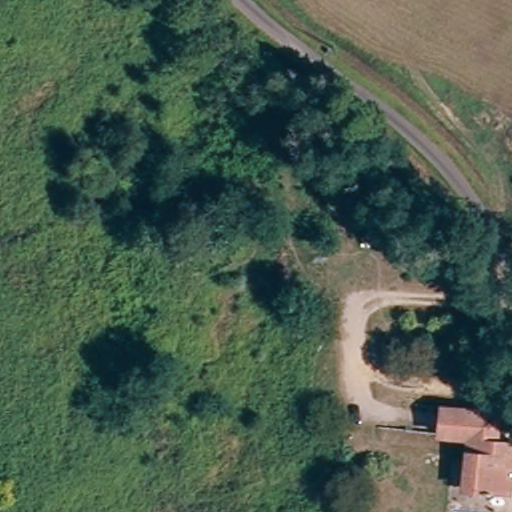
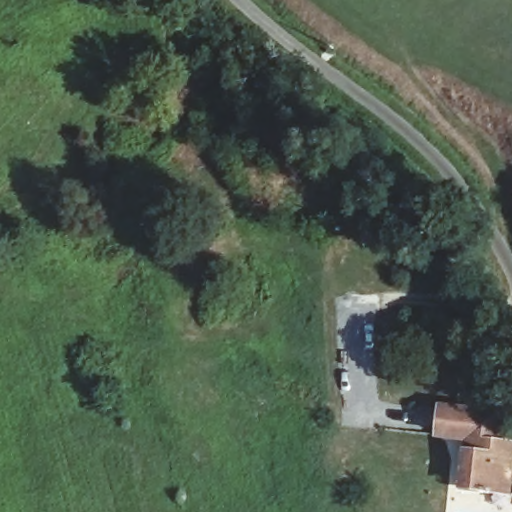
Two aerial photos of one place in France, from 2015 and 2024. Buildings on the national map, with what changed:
unchanged [(442,436),(444,412),(503,418),(501,445),(512,446),(512,498),(467,493),(469,466),(471,445),(472,440),(442,436)]

